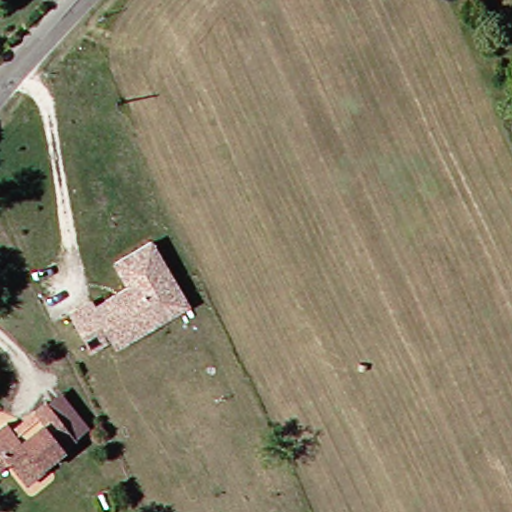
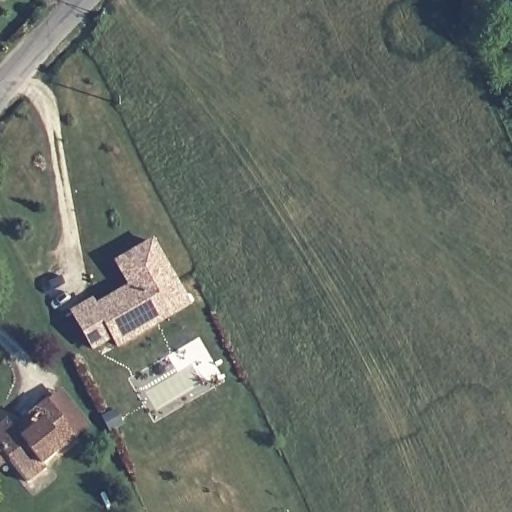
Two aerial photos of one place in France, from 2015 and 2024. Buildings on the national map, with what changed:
unchanged [(154,324),(117,345),(112,336),(92,347),(72,311),(93,299),(96,305),(131,285),(117,261),(154,240),(182,291),(189,304),(154,324)]
unchanged [(76,438),(48,466),(49,472),(32,485),(11,458),(0,465),(0,432),(10,424),(19,431),(39,414),(51,403),(76,438)]

